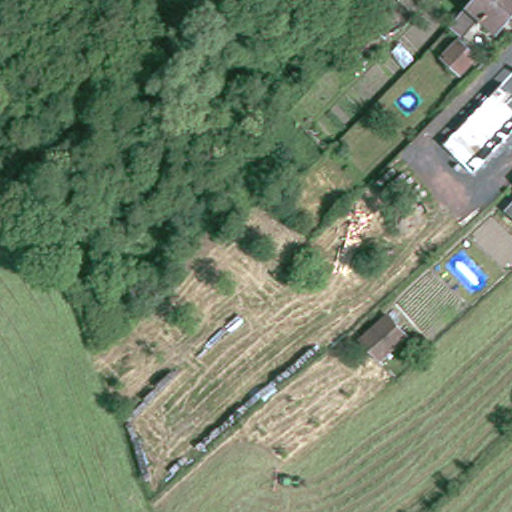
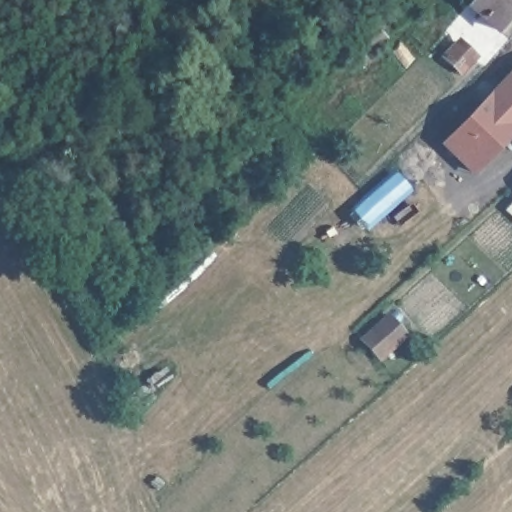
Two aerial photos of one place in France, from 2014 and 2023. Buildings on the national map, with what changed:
unchanged [(481,15),(462,37),(450,25),(472,0),(512,0),(512,12),(497,29),(481,15)]
unchanged [(356,45),(374,28),(383,37),(366,55),(356,45)]
unchanged [(444,55),(457,41),(475,57),(461,71),(444,55)]
new [(475,177),(441,145),(512,70),(512,138),(475,177)]
unchanged [(507,207),(512,202),(512,212),(507,207)]
unchanged [(380,358),(368,346),(362,339),(388,315),(395,322),(406,333),(380,358)]

